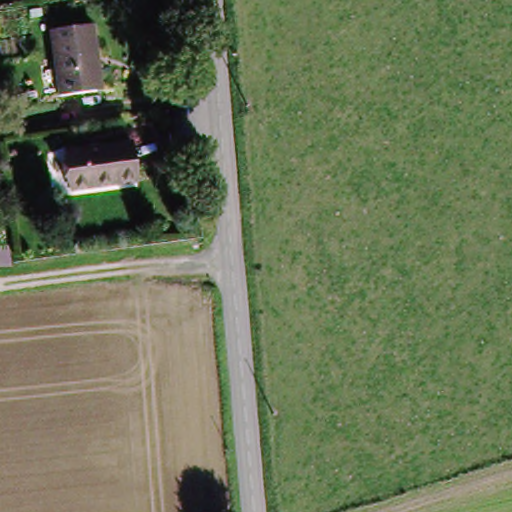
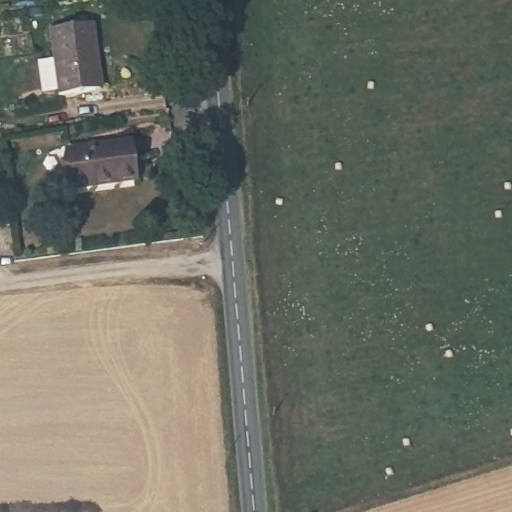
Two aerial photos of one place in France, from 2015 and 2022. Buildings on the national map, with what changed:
unchanged [(90,92),(55,95),(49,28),(93,24),(95,40),(97,67),(100,91),(90,92)]
unchanged [(125,141),(129,177),(62,185),(58,148),(125,141)]

